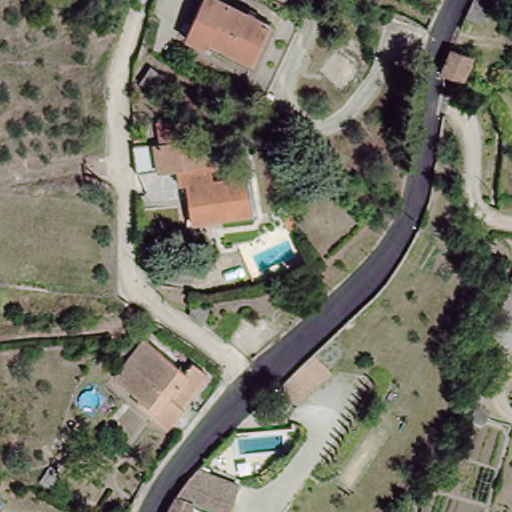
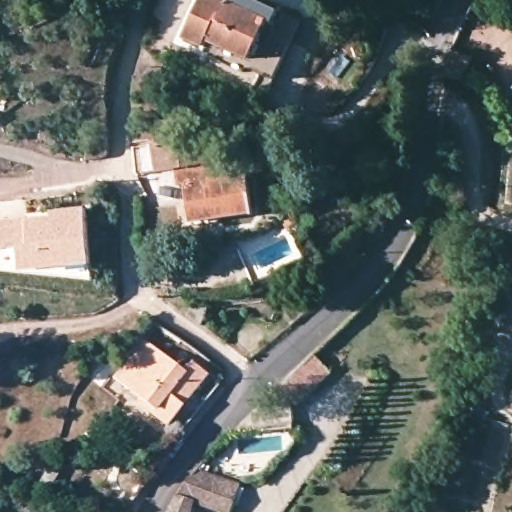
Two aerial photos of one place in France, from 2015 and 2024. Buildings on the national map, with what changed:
unchanged [(185,29),(202,0),(239,0),(273,19),(252,54),(247,62),(210,42),(185,29)]
unchanged [(483,29),(497,0),(512,6),(512,14),(502,36),(483,29)]
unchanged [(457,87),(469,61),(491,66),(482,92),(457,87)]
unchanged [(188,181),(181,181),(180,167),(140,169),(140,142),(169,140),(168,119),(200,117),(202,137),(208,137),(210,154),(223,152),(223,165),(211,165),(212,171),(246,170),(248,217),(212,220),(190,222),(190,207),(188,181)]
new [(52,210),(87,207),(93,265),(21,271),(19,247),(0,249),(0,221),(53,216),(52,210)]
unchanged [(201,414),(185,433),(172,422),(168,427),(150,412),(155,403),(117,372),(146,338),(185,367),(192,357),(212,373),(188,403),(201,414)]
new [(292,411),(274,392),(316,354),(333,373),(292,411)]
unchanged [(166,506),(196,478),(237,492),(232,512),(163,512),(166,506)]

